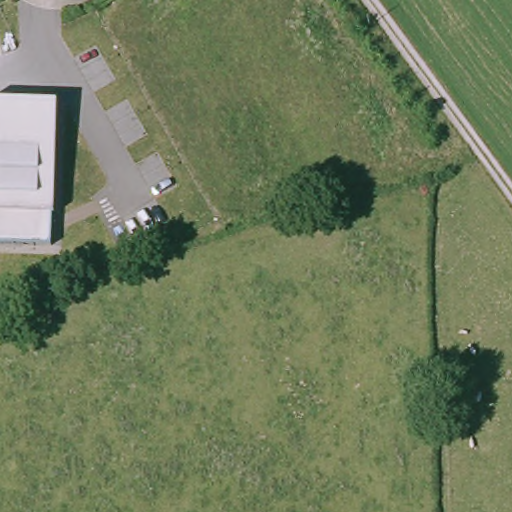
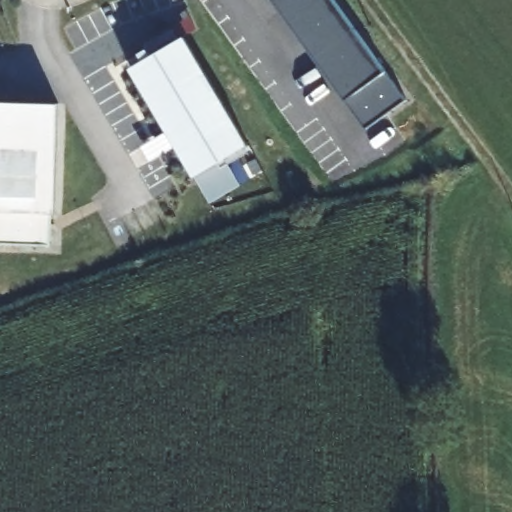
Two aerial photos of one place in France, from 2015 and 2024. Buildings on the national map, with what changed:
new [(405,101),(365,129),(273,0),(332,0),(405,101)]
new [(130,68),(185,36),(250,145),(218,163),(195,177),(130,68)]
unchanged [(57,102),(54,216),(51,246),(0,244),(0,101),(57,102)]
new [(222,168),(229,164),(242,185),(210,202),(195,177),(218,163),(222,168)]

